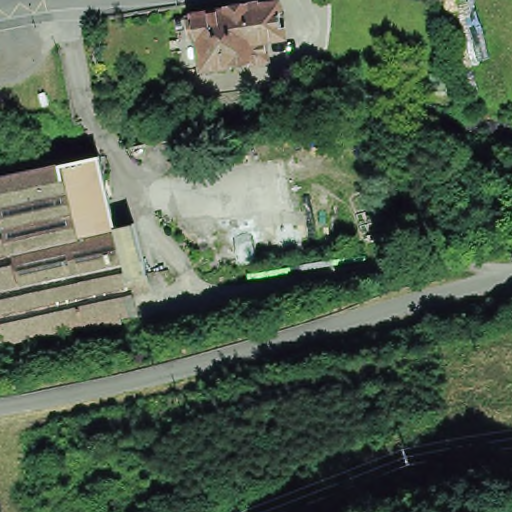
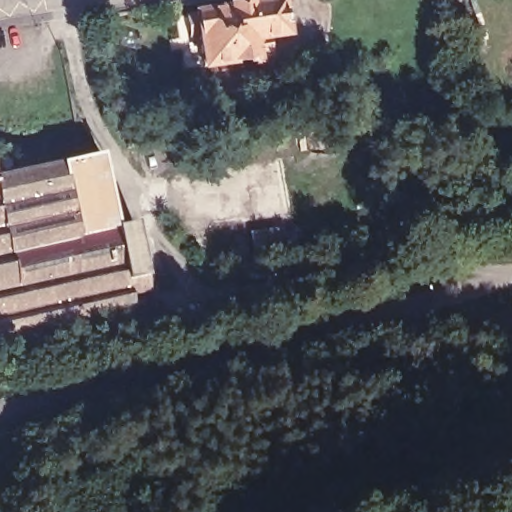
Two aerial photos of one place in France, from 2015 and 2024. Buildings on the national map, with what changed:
unchanged [(193,31),(199,30),(197,16),(205,15),(205,13),(238,8),(238,5),(257,2),(257,6),(289,1),(290,8),(294,12),(295,21),(293,27),(294,35),(274,38),(277,57),(213,67),(199,69),(193,31)]
unchanged [(100,157),(116,228),(134,225),(149,293),(131,297),(135,317),(117,321),(118,325),(83,333),(82,328),(0,347),(0,177),(100,157)]

